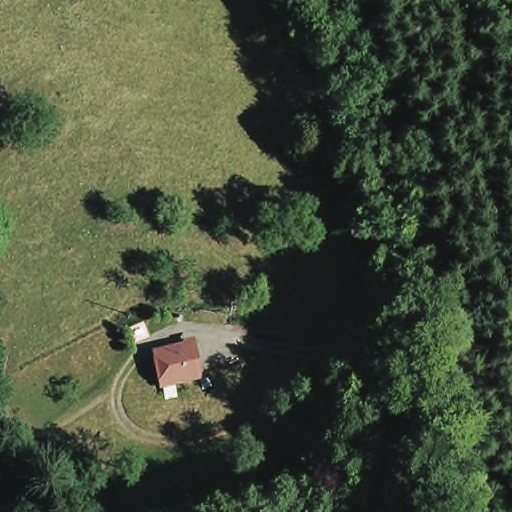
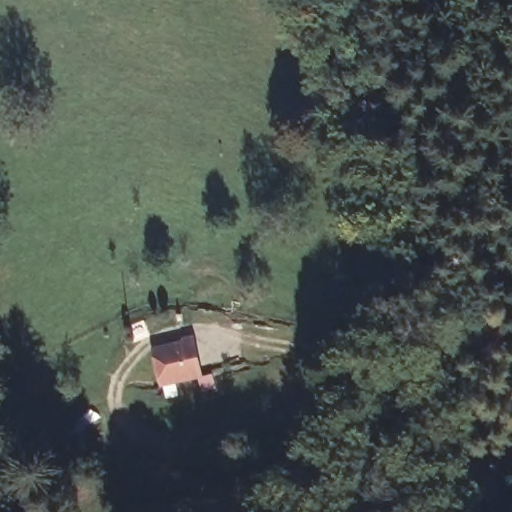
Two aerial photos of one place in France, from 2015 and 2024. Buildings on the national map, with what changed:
unchanged [(187,379),(150,388),(142,354),(180,346),(187,379)]

